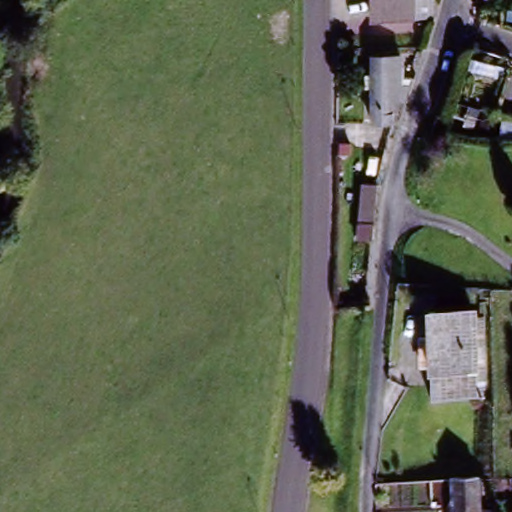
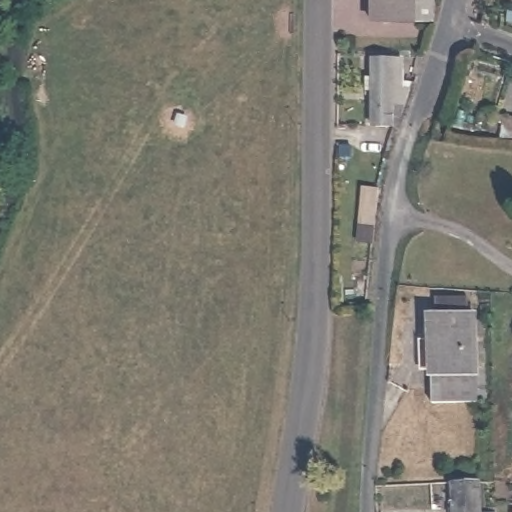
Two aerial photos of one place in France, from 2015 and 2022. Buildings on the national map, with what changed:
unchanged [(374,21),(374,0),(414,0),(414,21),(374,21)]
unchanged [(366,113),(367,57),(398,57),(398,82),(398,105),(393,130),(382,129),(366,127),(366,113)]
unchanged [(434,315),(475,311),(478,369),(438,371),(434,315)]
unchanged [(480,402),(439,404),(438,371),(478,369),(480,402)]
unchanged [(453,512),(452,490),(483,489),(484,512),(453,512)]

